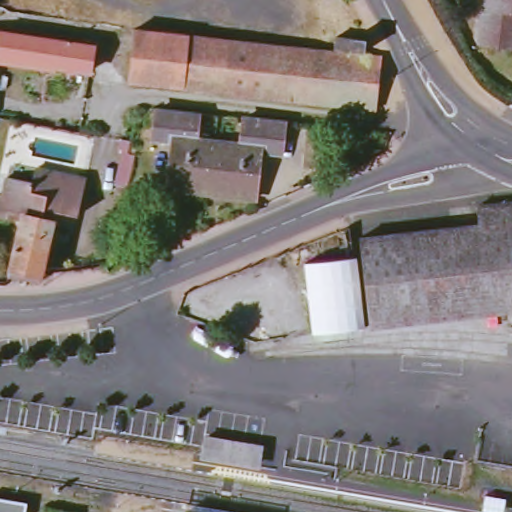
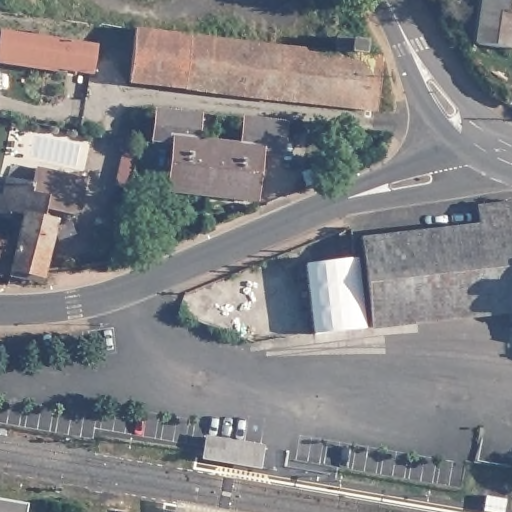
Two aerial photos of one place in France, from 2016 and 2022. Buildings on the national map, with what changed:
unchanged [(491,0),(512,0),(512,50),(485,48),(491,0)]
unchanged [(281,45),(282,49),(382,59),(376,110),(203,91),(130,83),(136,30),(281,45)]
unchanged [(32,38),(34,31),(39,33),(39,39),(96,46),(92,71),(0,57),(0,32),(32,38)]
unchanged [(334,36),(367,39),(367,51),(333,50),(334,36)]
unchanged [(199,139),(243,143),(246,118),(288,122),(285,156),(263,155),(258,200),(170,191),(175,145),(154,143),(158,109),(202,113),(199,139)]
unchanged [(131,152),(137,154),(130,185),(115,182),(123,140),(133,141),(131,152)]
unchanged [(40,176),(43,163),(94,174),(86,209),(64,205),(45,283),(13,276),(27,216),(2,210),(6,188),(12,189),(15,172),(40,176)]
unchanged [(363,238),(480,227),(479,204),(512,201),(512,315),(378,329),(317,339),(312,267),(366,256),(363,238)]
unchanged [(270,446),(266,476),(202,464),(209,436),(270,446)]
unchanged [(29,504),(28,512),(0,512),(0,500),(29,504)]
unchanged [(176,503),(230,512),(174,512),(176,503)]

